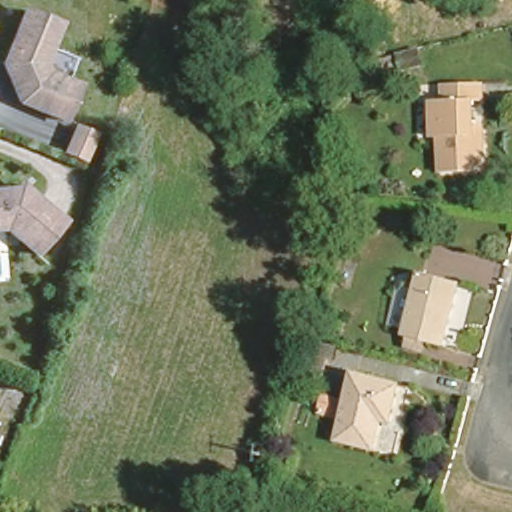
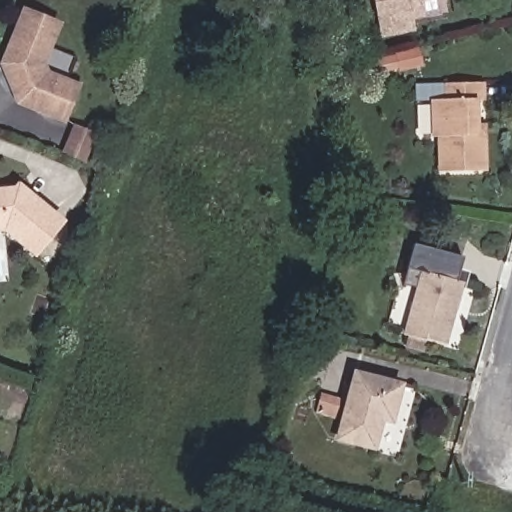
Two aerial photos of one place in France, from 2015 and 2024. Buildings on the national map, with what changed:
new [(416,32),(380,39),(373,0),(445,0),(447,12),(413,19),(416,32)]
unchanged [(42,68),(46,78),(77,91),(63,125),(18,107),(13,95),(16,88),(13,82),(7,81),(2,69),(24,15),(58,29),(42,68)]
unchanged [(421,64),(400,69),(397,54),(417,50),(421,64)]
unchanged [(485,165),(441,166),(440,132),(434,132),(433,95),(444,95),(444,79),(482,77),(483,95),(475,95),(476,121),(483,121),(484,131),(485,165)]
unchanged [(87,165),(61,154),(73,124),(99,133),(87,165)]
unchanged [(35,244),(4,218),(0,219),(0,180),(17,178),(19,176),(61,212),(35,244)]
unchanged [(367,224),(356,221),(361,204),(372,207),(367,224)]
unchanged [(443,341),(405,330),(422,267),(460,277),(443,341)]
unchanged [(323,370),(306,365),(314,339),(331,345),(323,370)]
unchanged [(338,433),(343,413),(319,406),(323,391),(347,397),(355,368),(400,380),(391,416),(381,413),(374,442),(338,433)]

